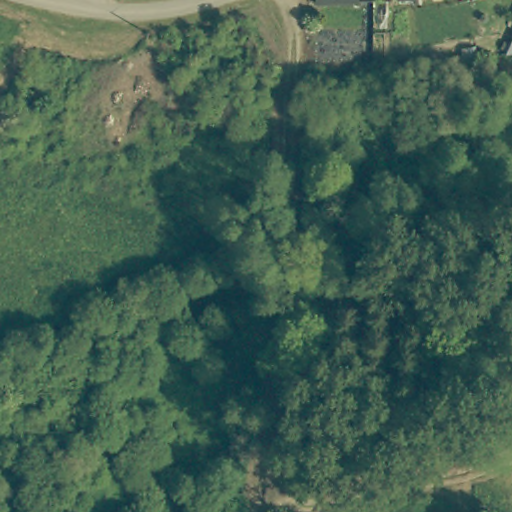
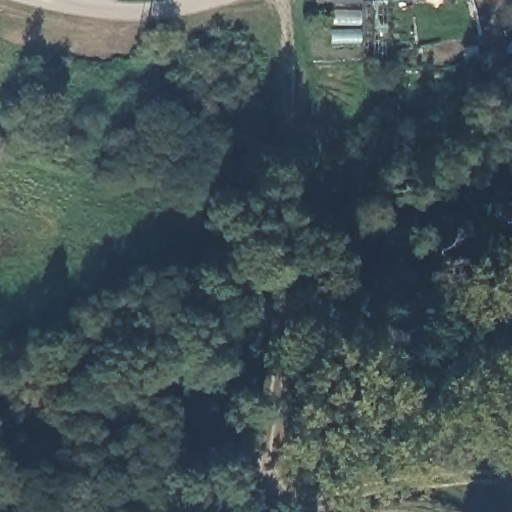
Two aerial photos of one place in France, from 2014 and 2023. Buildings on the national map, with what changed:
unchanged [(313,7),(314,0),(360,0),(360,9),(313,7)]

